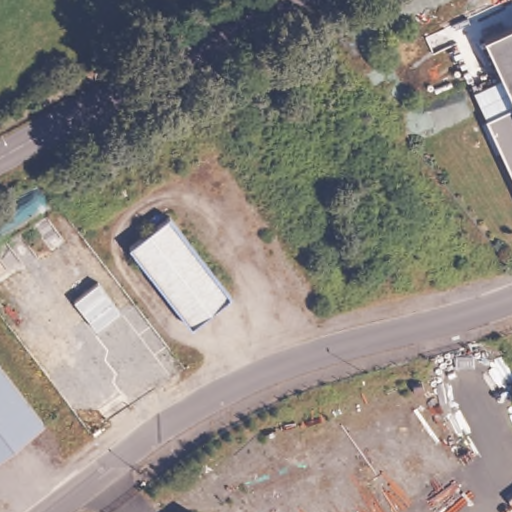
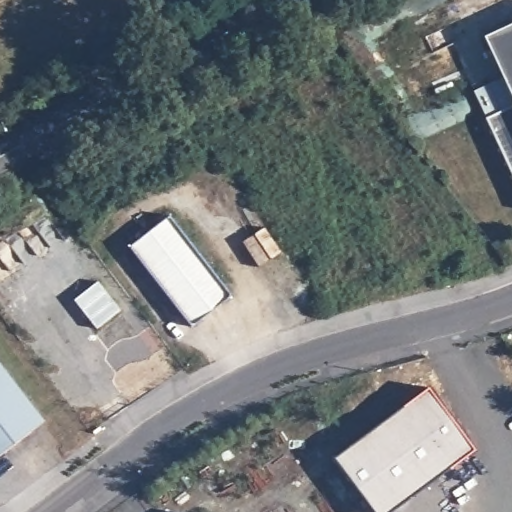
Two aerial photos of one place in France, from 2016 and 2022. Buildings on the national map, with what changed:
unchanged [(483,39),(504,30),(512,27),(512,81),(504,84),(483,39)]
unchanged [(512,81),(512,103),(504,84),(512,81)]
unchanged [(492,117),(512,108),(512,182),(484,121),(492,117)]
unchanged [(175,216),(237,295),(197,327),(135,244),(175,216)]
unchanged [(0,454),(0,356),(48,417),(0,454)]
new [(373,512),(335,456),(428,388),(475,450),(389,512),(373,512)]

